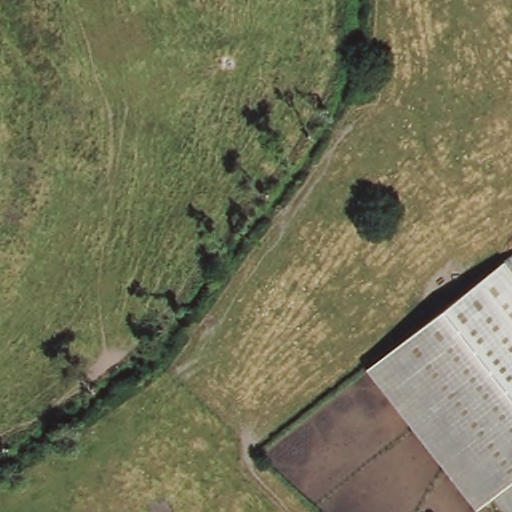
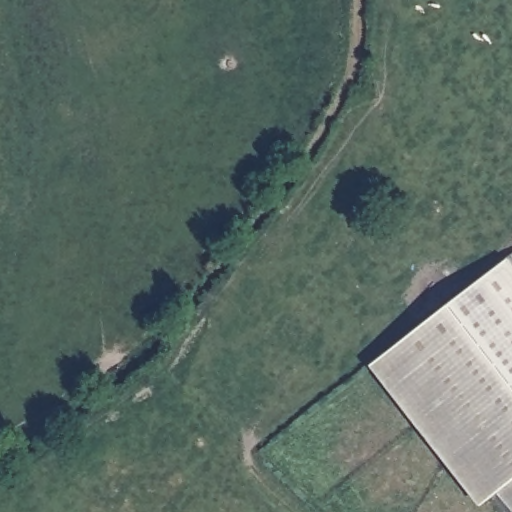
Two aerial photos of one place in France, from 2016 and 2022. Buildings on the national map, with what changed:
unchanged [(473,511),(361,370),(512,252),(512,512),(500,512),(490,499),(473,511)]

